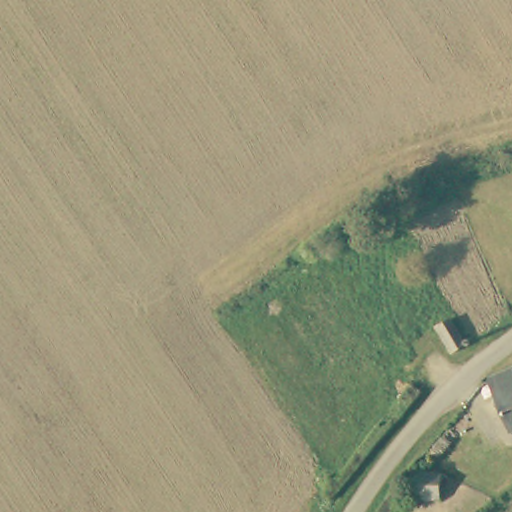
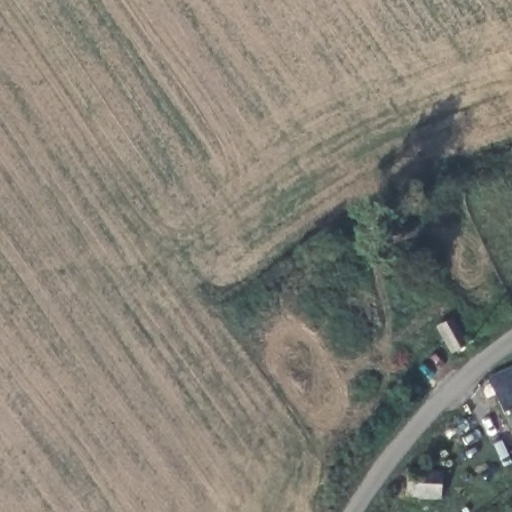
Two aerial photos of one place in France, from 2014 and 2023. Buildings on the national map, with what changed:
unchanged [(455,310),(470,335),(455,347),(439,319),(455,310)]
unchanged [(512,367),(512,431),(506,433),(481,379),(512,367)]
unchanged [(412,461),(446,465),(444,492),(408,488),(412,461)]

